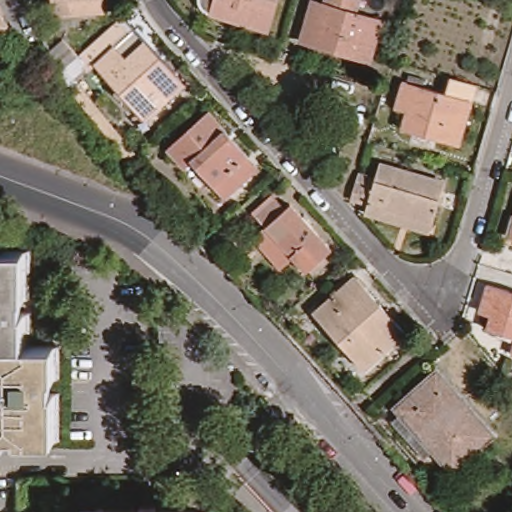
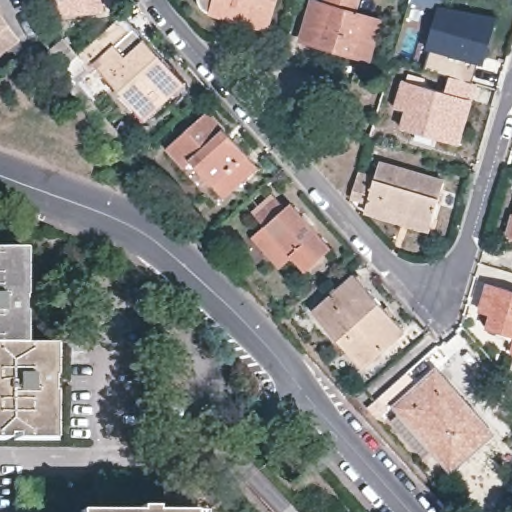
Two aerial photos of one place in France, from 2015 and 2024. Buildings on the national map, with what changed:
unchanged [(12,16),(0,25),(0,0),(1,0),(12,16)]
unchanged [(104,11),(55,13),(55,0),(104,0),(104,11)]
unchanged [(272,29),(210,12),(206,10),(204,6),(203,2),(204,0),(281,0),(272,29)]
unchanged [(369,59),(303,40),(302,39),(302,38),(313,0),(316,0),(325,2),(326,0),(357,0),(354,11),(380,18),(369,59)]
new [(443,2),(497,17),(485,66),(478,64),(473,80),(452,74),(426,66),(432,50),(426,48),(439,8),(410,1),(411,0),(444,0),(443,2)]
unchanged [(68,55),(78,47),(92,63),(135,24),(147,36),(150,34),(199,90),(162,123),(112,67),(105,73),(103,71),(90,83),(82,72),(68,55)]
unchanged [(479,82),(462,144),(401,126),(407,109),(395,106),(404,78),(446,91),(452,74),(479,82)]
unchanged [(263,167),(229,197),(199,163),(192,168),(173,147),(214,111),(263,167)]
unchanged [(355,200),(363,177),(380,181),(385,163),(449,182),(435,230),(371,211),(372,206),(356,201),(355,200)]
unchanged [(337,249),(312,271),(262,215),(283,198),(292,208),(297,204),(337,249)]
unchanged [(512,234),(512,236),(511,235),(512,234)]
unchanged [(28,248),(27,295),(15,294),(15,309),(27,310),(26,341),(0,340),(0,248),(28,248)]
unchanged [(410,331),(369,367),(320,311),(360,275),(410,331)]
unchanged [(55,342),(55,377),(43,376),(42,390),(54,391),(53,436),(52,437),(7,435),(7,431),(0,431),(0,340),(26,341),(55,342)]
unchanged [(493,432),(452,469),(395,405),(436,369),(493,432)]
unchanged [(47,506),(7,505),(7,472),(45,472),(47,473),(47,474),(47,506)]

